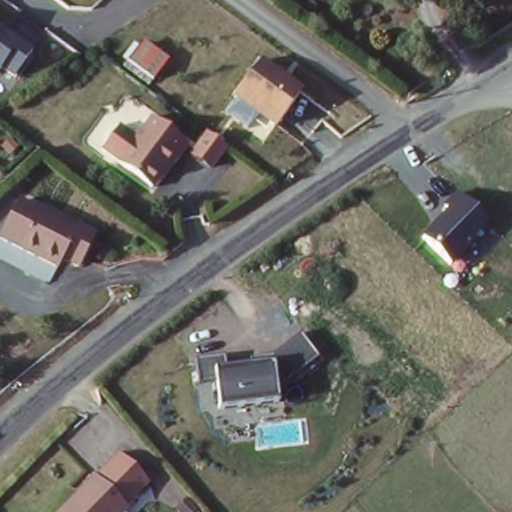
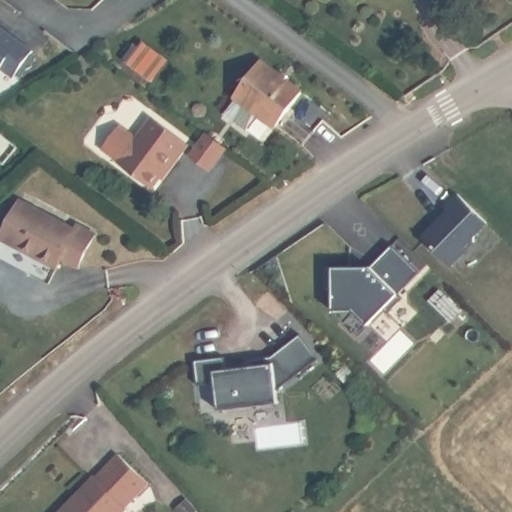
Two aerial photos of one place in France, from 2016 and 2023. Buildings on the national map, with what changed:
unchanged [(5,32),(31,52),(14,76),(1,67),(0,69),(0,34),(1,34),(5,32)]
new [(145,42),(170,60),(155,81),(129,63),(145,42)]
unchanged [(263,60),(301,89),(276,128),(236,97),(263,60)]
unchanged [(122,125),(137,136),(150,118),(187,148),(155,190),(119,166),(123,160),(105,148),(122,125)]
new [(206,136),(226,150),(211,171),(190,156),(206,136)]
unchanged [(492,221),(474,239),(476,242),(452,267),(422,238),(448,211),(444,208),(458,194),(492,221)]
unchanged [(77,227),(95,240),(72,271),(58,260),(50,269),(0,231),(0,226),(24,197),(72,235),(77,227)]
new [(422,273),(370,326),(355,312),(334,312),(335,268),(372,267),(393,245),(422,273)]
unchanged [(215,383),(196,386),(195,362),(222,358),(224,370),(263,365),(300,338),(315,359),(276,390),(277,403),(219,412),(215,383)]
unchanged [(124,456),(154,487),(127,512),(65,512),(124,456)]
unchanged [(195,510),(196,512),(192,512),(195,510)]

